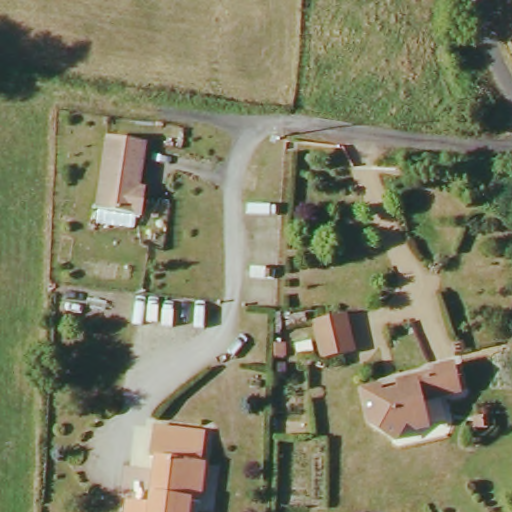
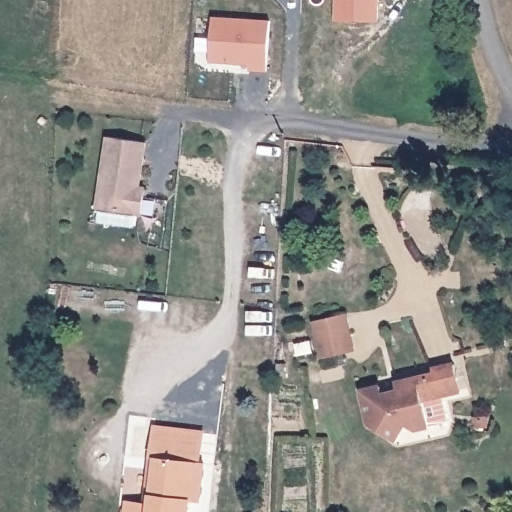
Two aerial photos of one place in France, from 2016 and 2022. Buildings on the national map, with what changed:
new [(380,0),(380,21),(336,20),(336,0),(380,0)]
new [(250,65),(211,61),(214,16),(270,20),(268,71),(250,70),(250,65)]
unchanged [(142,139),(136,186),(142,187),(137,212),(92,206),(103,134),(142,139)]
unchanged [(341,312),(350,350),(318,356),(310,318),(341,312)]
unchanged [(429,370),(428,365),(452,360),(457,388),(421,396),(425,422),(410,425),(401,417),(391,434),(365,414),(359,384),(376,381),(377,387),(393,384),(392,377),(429,370)]
unchanged [(197,435),(194,462),(198,463),(193,507),(180,506),(179,512),(117,512),(118,505),(142,506),(147,456),(143,456),(146,429),(197,435)]

